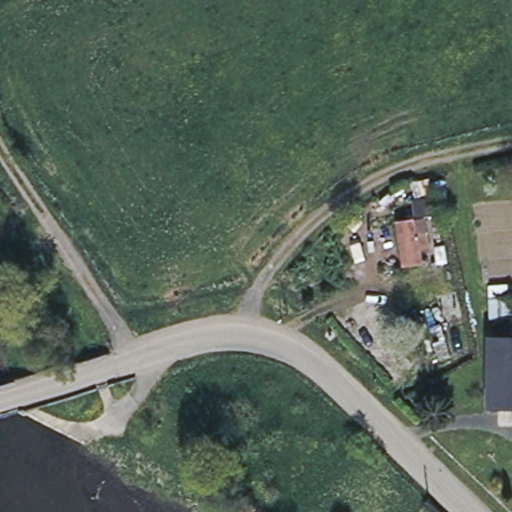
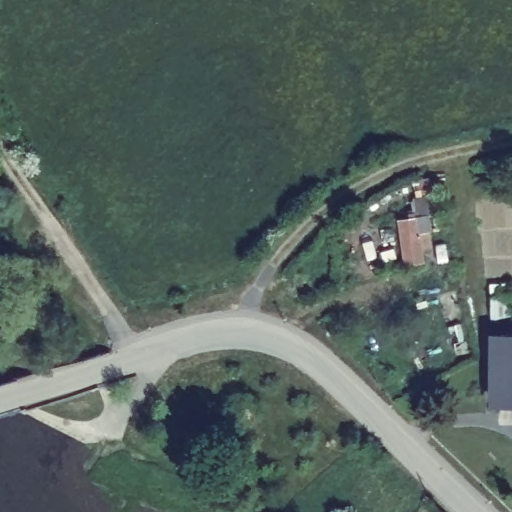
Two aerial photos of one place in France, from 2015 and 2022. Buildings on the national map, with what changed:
unchanged [(435,243),(425,244),(407,247),(403,216),(421,213),(423,228),(433,226),(435,243)]
unchanged [(490,318),(490,310),(490,296),(510,296),(510,308),(510,318),(490,318)]
unchanged [(492,337),(512,337),(512,405),(492,405),(492,337)]

